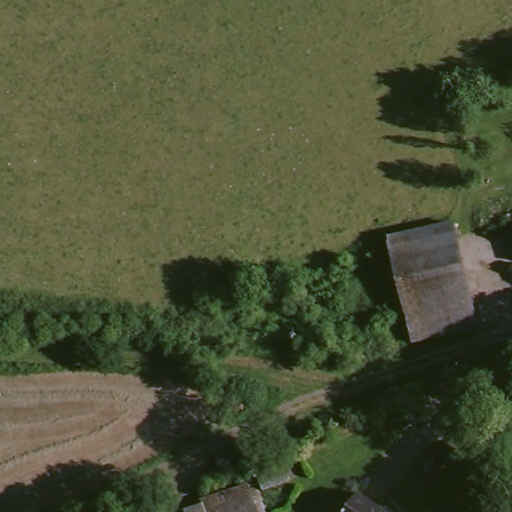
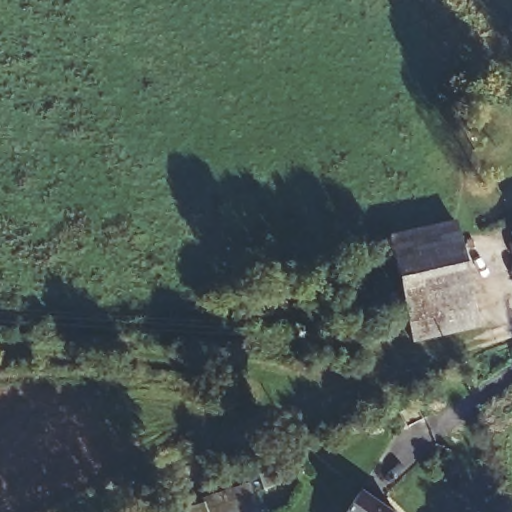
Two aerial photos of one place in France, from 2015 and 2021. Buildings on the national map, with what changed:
unchanged [(512,217),(512,253),(499,222),(512,217)]
unchanged [(385,246),(446,228),(451,226),(453,233),(458,250),(392,269),(387,251),(385,246)]
unchanged [(392,269),(458,250),(471,291),(482,326),(413,344),(405,317),(392,269)]
unchanged [(283,452),(258,461),(254,450),(279,441),(283,452)]
unchanged [(251,512),(201,512),(198,502),(244,488),(251,512)]
unchanged [(383,512),(344,512),(361,492),(383,512)]

